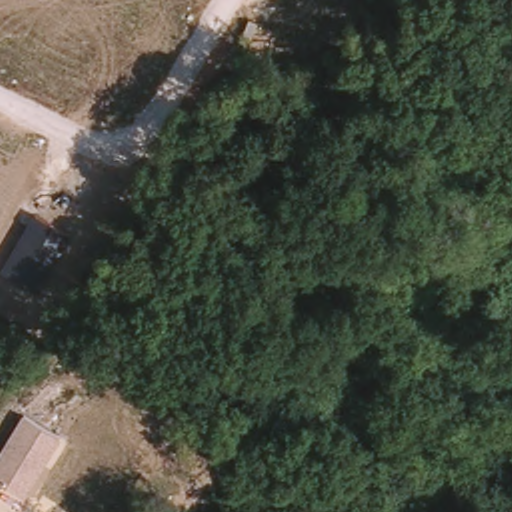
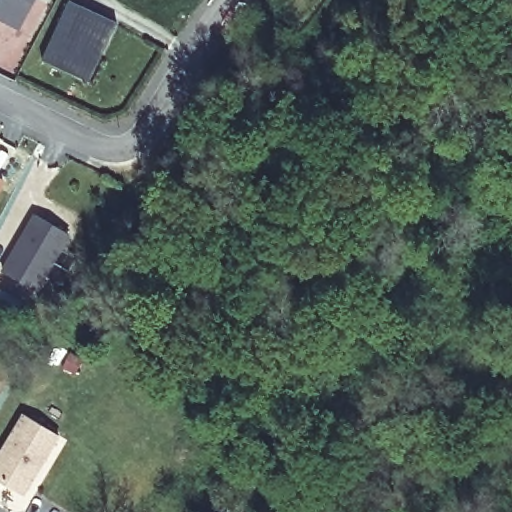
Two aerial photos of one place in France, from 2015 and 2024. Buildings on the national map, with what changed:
new [(35,0),(33,3),(19,30),(0,19),(0,0),(35,0)]
new [(42,59),(69,1),(116,23),(90,81),(42,59)]
new [(1,181),(0,183),(0,180),(1,181)]
unchanged [(33,214),(70,233),(36,291),(1,271),(33,214)]
unchanged [(61,435),(26,495),(0,479),(0,449),(22,412),(61,435)]

